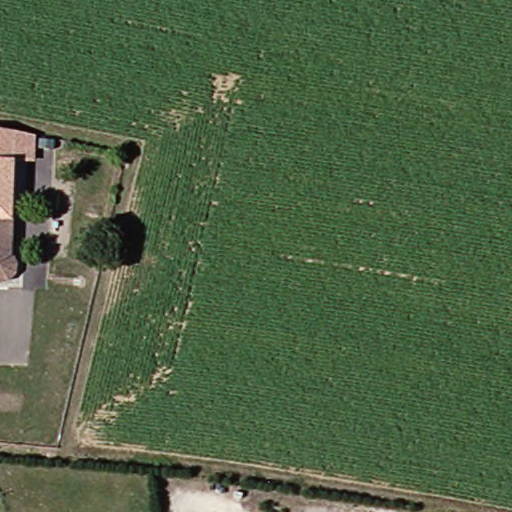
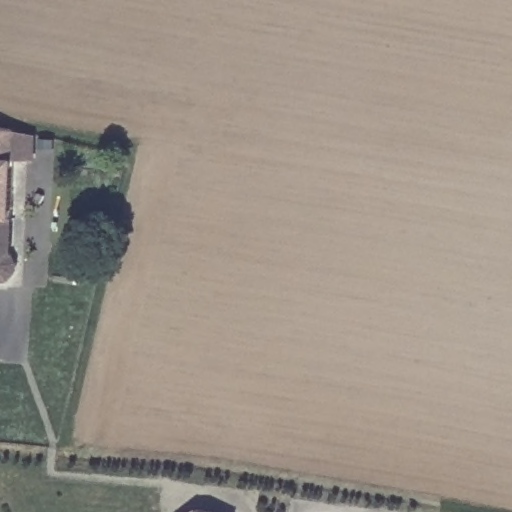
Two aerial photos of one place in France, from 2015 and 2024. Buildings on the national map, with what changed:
unchanged [(22,166),(0,164),(0,127),(25,131),(22,166)]
unchanged [(20,267),(20,282),(9,289),(0,289),(0,164),(22,166),(14,261),(20,267)]

